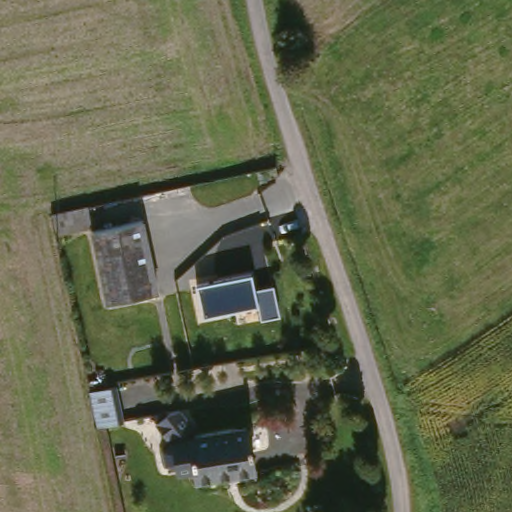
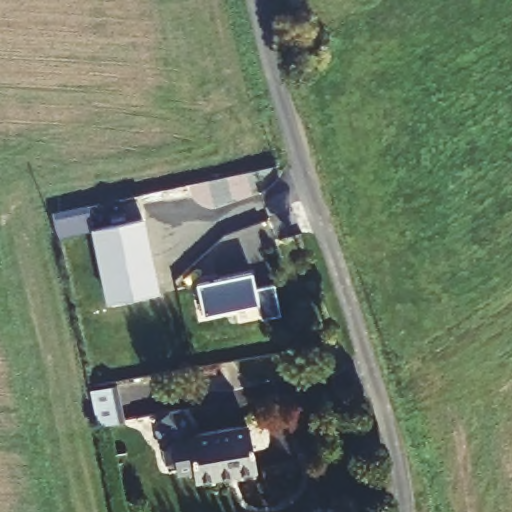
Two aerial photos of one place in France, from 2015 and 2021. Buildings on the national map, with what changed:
unchanged [(67,237),(64,219),(101,212),(104,230),(67,237)]
unchanged [(104,234),(152,224),(168,298),(118,308),(104,234)]
unchanged [(202,283),(256,272),(263,304),(209,316),(202,283)]
unchanged [(84,408),(78,377),(102,372),(107,403),(84,408)]
unchanged [(200,475),(198,467),(180,471),(178,460),(170,461),(170,447),(178,440),(165,416),(176,408),(191,408),(194,424),(187,432),(253,420),(261,465),(200,475)]

